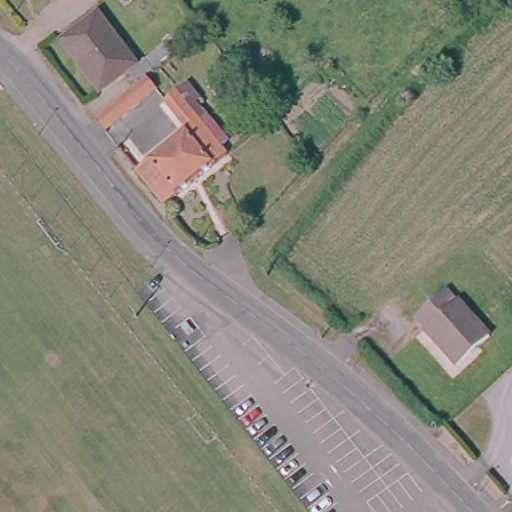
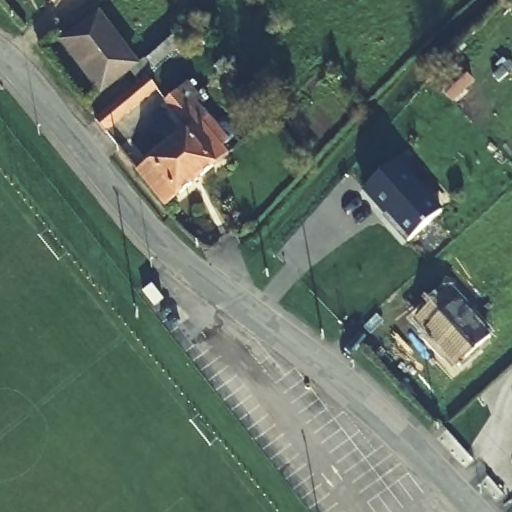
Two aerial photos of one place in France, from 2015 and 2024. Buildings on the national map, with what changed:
unchanged [(45,0),(63,0),(52,8),(45,0)]
unchanged [(95,14),(134,64),(100,91),(60,41),(95,14)]
unchanged [(182,45),(153,70),(146,61),(175,37),(182,45)]
unchanged [(156,90),(103,132),(93,120),(146,79),(156,90)]
unchanged [(163,101),(186,82),(198,98),(187,107),(226,154),(163,206),(135,170),(186,128),(163,101)]
new [(443,210),(409,241),(363,190),(397,158),(443,210)]
unchanged [(446,289),(488,337),(456,365),(413,318),(446,289)]
unchanged [(185,322),(193,331),(188,335),(180,327),(185,322)]

